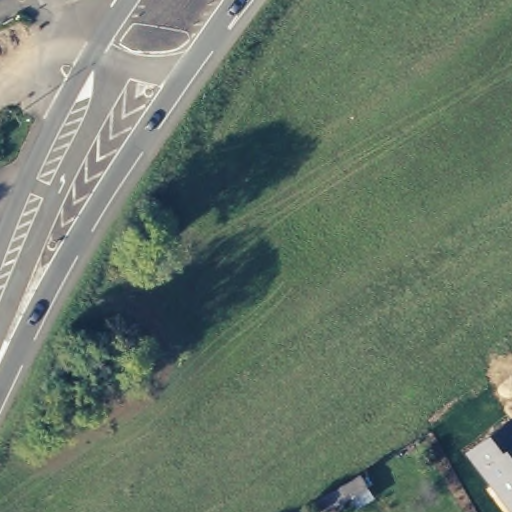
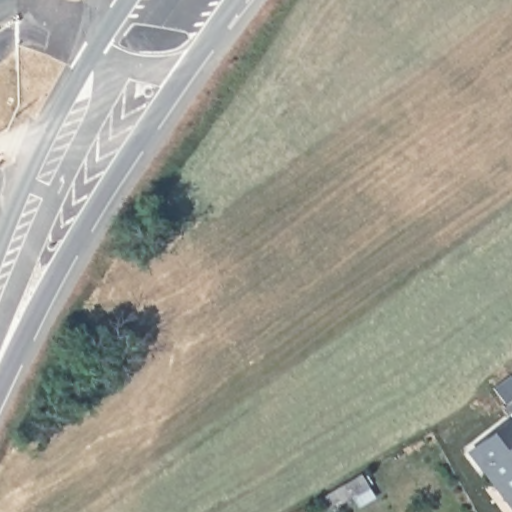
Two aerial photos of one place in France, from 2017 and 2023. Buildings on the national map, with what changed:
unchanged [(512,509),(466,450),(512,415),(512,509)]
unchanged [(341,488),(347,498),(324,512),(316,512),(312,505),(341,488)]

